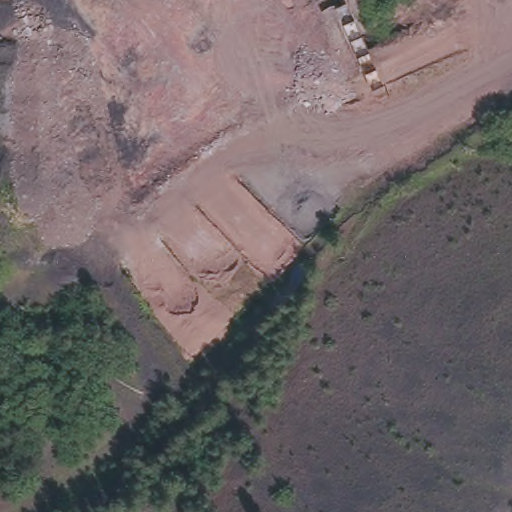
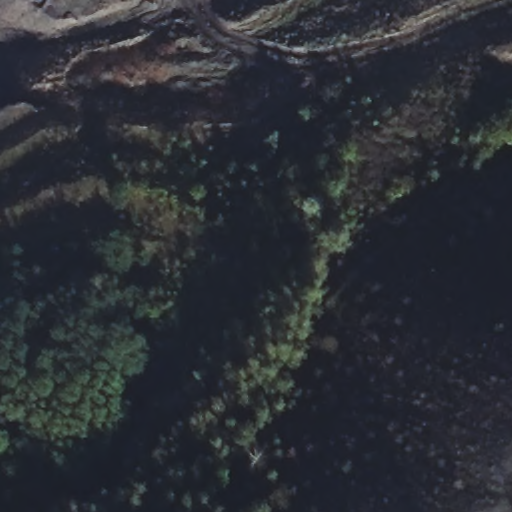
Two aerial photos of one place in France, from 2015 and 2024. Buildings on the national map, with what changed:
[]

